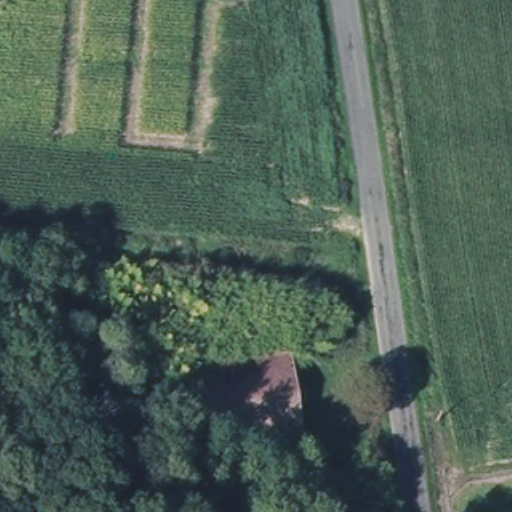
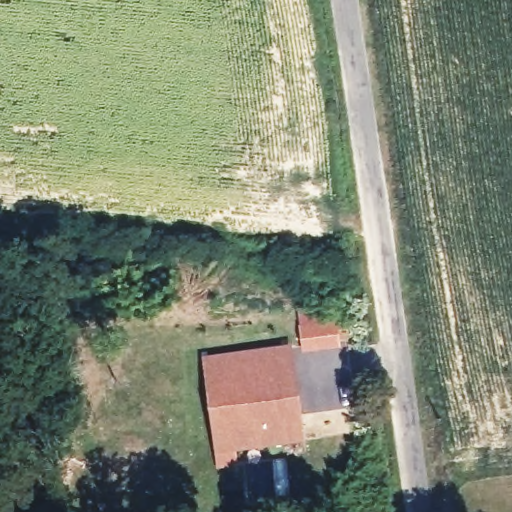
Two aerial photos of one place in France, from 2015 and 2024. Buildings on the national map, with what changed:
new [(308,313),(309,322),(338,322),(339,340),(299,344),(294,315),(308,313)]
demolished [(229,455),(210,340),(336,320),(342,343),(292,355),(304,442),(229,455)]
new [(216,451),(214,442),(203,357),(291,348),(305,439),(216,451)]

